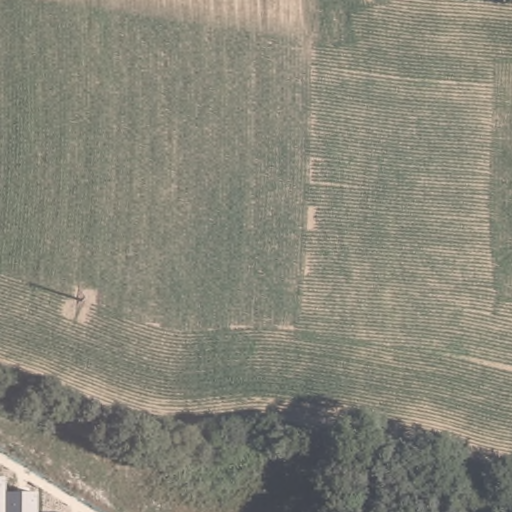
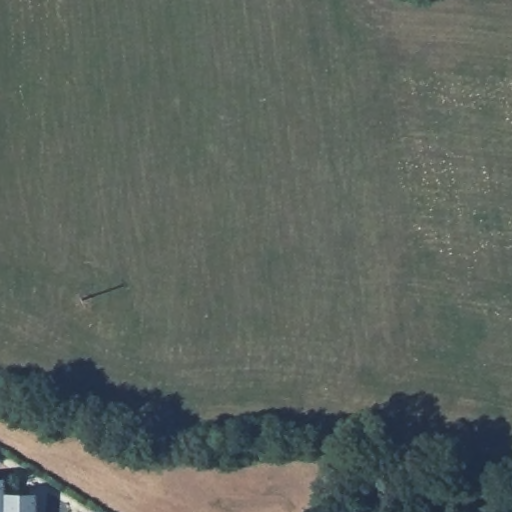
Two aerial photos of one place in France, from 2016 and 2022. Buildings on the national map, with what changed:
unchanged [(4,476),(4,492),(36,491),(36,512),(0,512),(0,477),(4,476)]

